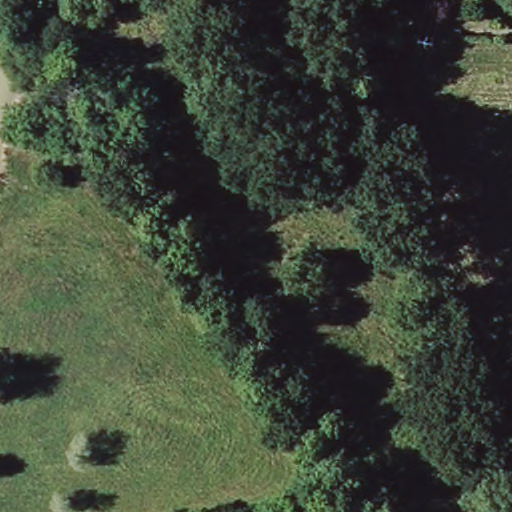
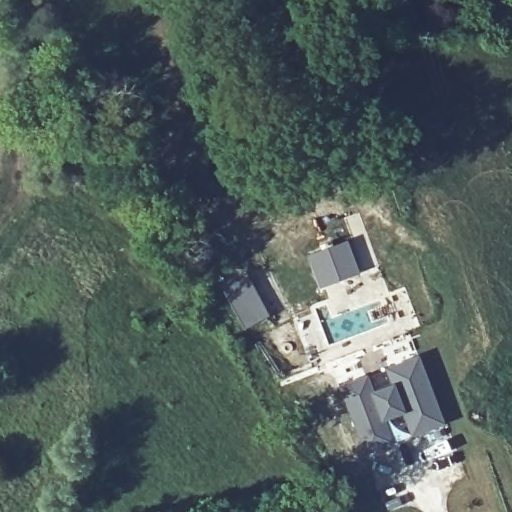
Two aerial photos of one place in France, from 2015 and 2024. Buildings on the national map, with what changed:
new [(343,243),(355,276),(317,290),(305,258),(343,243)]
new [(243,273),(266,317),(242,330),(219,286),(243,273)]
new [(364,378),(370,394),(390,386),(383,370),(415,358),(440,425),(408,437),(400,413),(380,421),(388,444),(362,454),(336,388),(364,378)]

